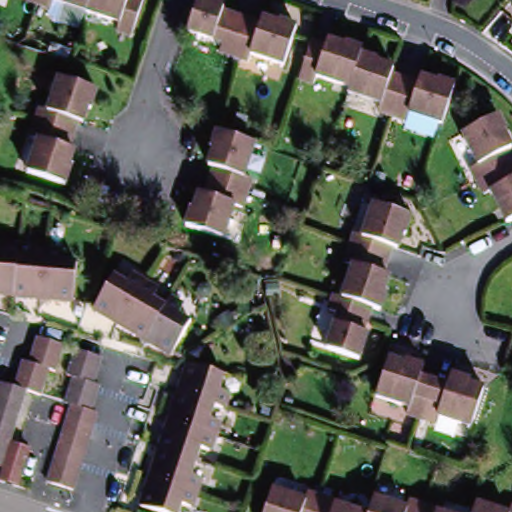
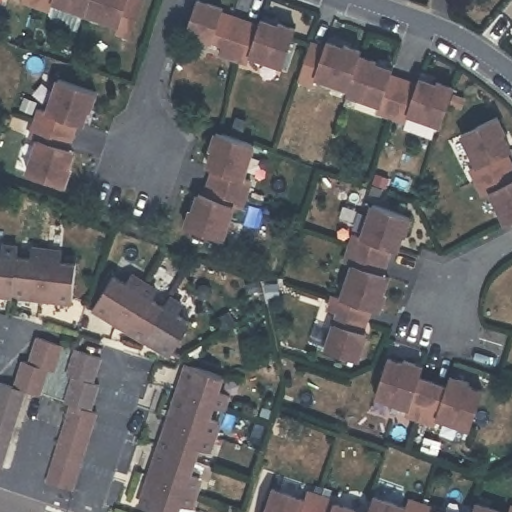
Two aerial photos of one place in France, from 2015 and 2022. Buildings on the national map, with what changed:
unchanged [(33,2),(27,0),(34,0),(33,2)]
unchanged [(34,0),(50,0),(48,7),(33,2),(34,0)]
unchanged [(84,7),(70,2),(69,5),(53,0),(86,0),(84,7)]
unchanged [(129,33),(114,28),(116,21),(98,15),(99,11),(84,7),(86,0),(140,0),(129,33)]
unchanged [(223,9),(232,12),(234,7),(248,12),(262,16),(278,22),(281,14),(298,20),(287,54),(272,49),(271,52),(253,46),(250,54),(236,49),(222,44),(225,35),(189,23),(196,0),(225,0),(223,9)]
unchanged [(333,75),(332,78),(314,72),(311,80),(296,75),(308,37),(322,42),(339,48),(341,40),(358,45),(356,51),(347,80),(333,75)]
unchanged [(373,56),(371,65),(383,69),(388,70),(401,74),(389,112),(375,107),(377,99),(373,98),(359,93),(360,90),(345,86),(347,80),(356,51),(373,56)]
unchanged [(415,79),(432,84),(434,76),(452,82),(440,117),(426,112),(424,115),(406,109),(403,116),(389,112),(401,74),(415,79)]
unchanged [(42,119),(47,105),(55,107),(60,89),(63,90),(68,75),(103,86),(97,105),(88,102),(85,118),(80,131),(42,119)]
unchanged [(501,203),(499,205),(490,187),(483,191),(476,178),(469,164),(476,160),(467,143),(470,142),(463,128),(496,112),(504,128),(496,132),(504,148),(510,160),(512,164),(512,215),(508,217),(501,203)]
unchanged [(80,131),(76,144),(71,160),(80,162),(74,181),(39,170),(44,155),(41,154),(46,136),(38,134),(42,119),(80,131)]
unchanged [(216,164),(221,147),(214,145),(220,128),(254,139),(249,154),(253,155),(246,173),(254,176),(249,190),(211,177),(216,164)]
unchanged [(249,190),(244,204),(236,202),(230,220),(227,219),(222,233),(187,222),(193,205),(201,207),(207,190),(211,177),(249,190)]
unchanged [(389,254),(352,242),(356,228),(365,230),(371,212),(374,213),(379,199),(414,210),(408,229),(399,226),(394,241),(389,254)]
unchanged [(353,278),(349,277),(355,259),(347,256),(352,242),(389,254),(385,268),(380,283),(388,286),(382,304),(373,301),(347,293),(353,278)]
unchanged [(1,261),(3,251),(17,253),(14,264),(30,266),(33,255),(63,259),(61,270),(76,273),(70,311),(0,298),(0,260),(1,261)]
unchanged [(111,284),(123,292),(129,282),(144,291),(137,301),(150,308),(157,298),(181,313),(175,322),(190,329),(169,363),(91,319),(111,284)]
unchanged [(373,301),(368,316),(363,314),(360,324),(369,327),(360,353),(328,342),(340,306),(331,303),(336,288),(347,293),(373,301)]
unchanged [(12,393),(20,368),(27,370),(38,343),(64,351),(53,380),(49,378),(40,405),(25,399),(22,421),(38,432),(19,485),(0,476),(0,389),(12,393)]
unchanged [(72,410),(62,408),(73,380),(66,378),(76,350),(103,358),(93,385),(101,387),(91,414),(98,416),(73,493),(45,483),(72,410)]
unchanged [(404,356),(405,353),(417,357),(414,368),(436,375),(424,412),(409,408),(411,400),(393,395),(394,391),(379,387),(389,352),(404,356)]
unchanged [(223,378),(219,392),(226,394),(221,410),(214,408),(209,420),(218,422),(206,455),(199,453),(188,480),(196,482),(188,511),(180,508),(178,512),(145,512),(138,510),(188,367),(223,378)]
unchanged [(456,381),(459,371),(472,374),(471,377),(485,382),(475,417),(460,412),(459,415),(441,410),(438,417),(424,412),(436,375),(456,381)]
unchanged [(265,512),(274,485),(289,490),(290,487),(310,493),(312,485),(327,490),(318,512),(265,512)]
unchanged [(340,497),(358,503),(357,506),(372,511),(371,512),(318,512),(327,490),(341,495),(340,497)]
unchanged [(378,492),(392,497),(393,494),(411,501),(414,493),(423,497),(419,512),(371,512),(372,511),(378,492)]
unchanged [(438,501),(437,503),(455,508),(454,511),(457,512),(419,512),(423,497),(438,501)]
unchanged [(489,503),(490,500),(508,506),(510,498),(512,498),(512,512),(470,512),(474,499),(489,503)]

